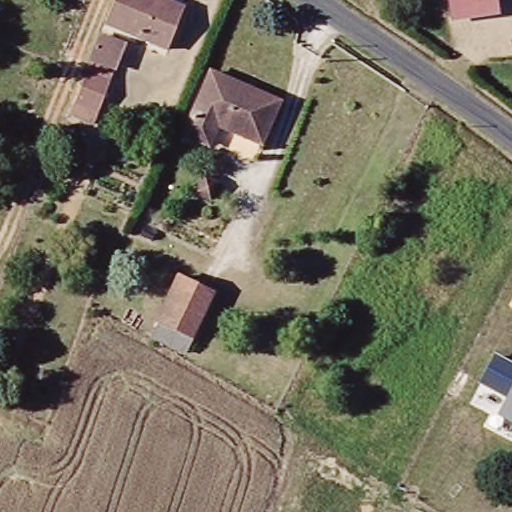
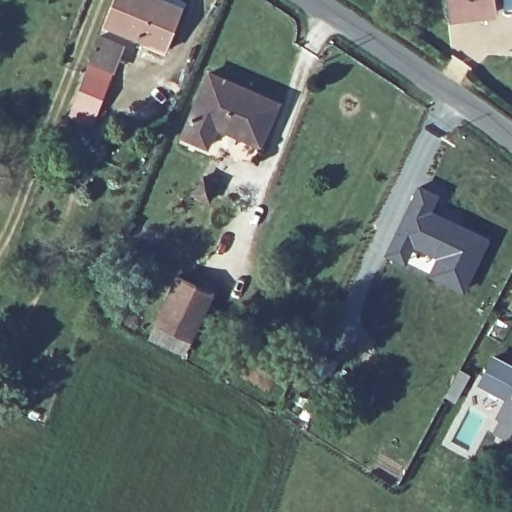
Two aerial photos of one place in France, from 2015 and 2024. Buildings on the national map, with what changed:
unchanged [(169,47),(105,21),(113,0),(170,0),(186,6),(169,47)]
unchanged [(495,0),(497,15),(455,21),(452,0),(495,0)]
unchanged [(117,66),(93,126),(68,115),(93,57),(117,66)]
unchanged [(223,121),(214,142),(182,131),(214,70),(280,104),(261,140),(223,121)]
new [(416,183),(440,194),(434,209),(491,238),(464,295),(425,276),(433,259),(415,250),(406,269),(382,257),(416,183)]
unchanged [(210,300),(188,346),(153,329),(176,283),(210,300)]
unchanged [(497,415),(506,398),(478,384),(494,354),(512,362),(512,423),(497,415)]

